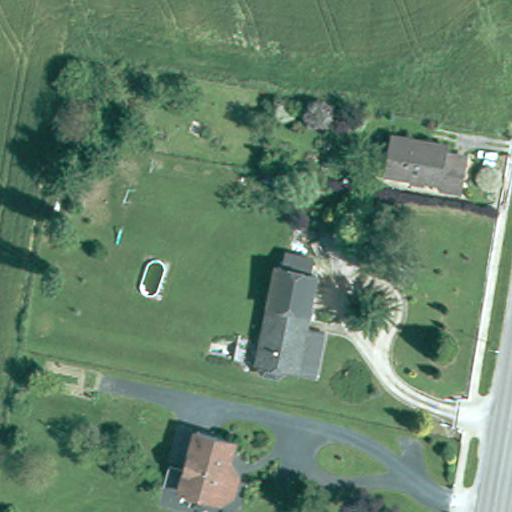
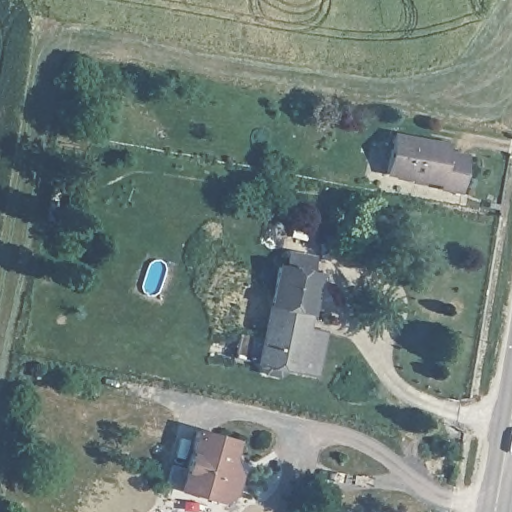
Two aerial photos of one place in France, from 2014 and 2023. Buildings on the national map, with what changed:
unchanged [(443,161),(463,165),(458,200),(436,196),(437,191),(381,180),(388,145),(445,154),(443,161)]
unchanged [(315,378),(298,375),(285,373),(285,376),(278,380),(265,378),(261,372),(262,369),(260,369),(276,272),(315,278),(305,332),(322,334),(315,378)]
unchanged [(167,468),(187,472),(197,432),(237,440),(232,457),(240,473),(233,497),(222,503),(182,492),(163,487),(167,468)]

